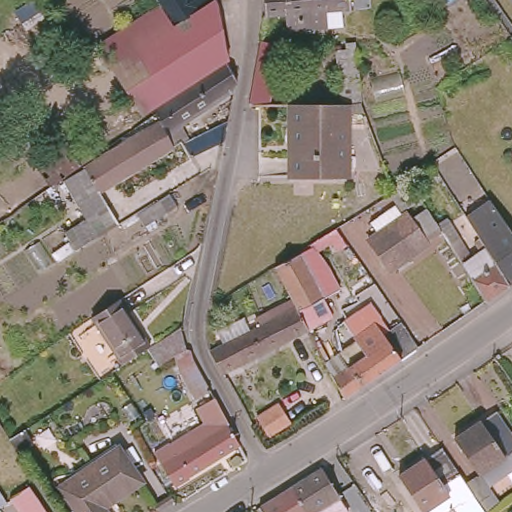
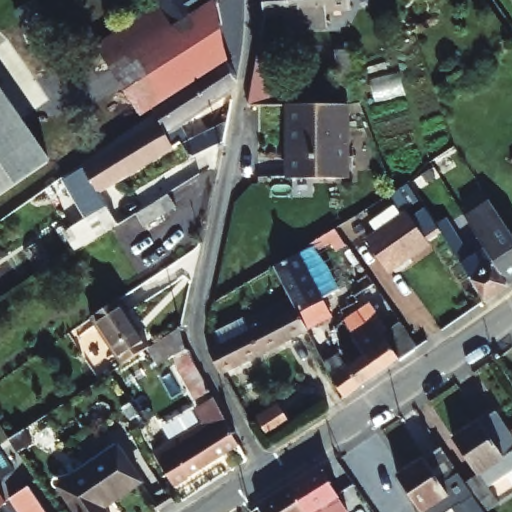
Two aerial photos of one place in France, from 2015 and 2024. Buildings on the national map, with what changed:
unchanged [(111,88),(128,77),(103,40),(148,11),(164,0),(176,20),(206,0),(225,0),(239,49),(234,53),(158,97),(146,104),(130,116),(111,88)]
unchanged [(176,20),(164,0),(206,0),(176,20)]
unchanged [(359,20),(346,21),(346,36),(286,37),(285,21),(264,21),(263,0),(359,0),(359,20)]
unchanged [(287,41),(278,96),(274,96),(274,100),(253,101),(248,101),(261,37),(287,41)]
unchanged [(162,104),(158,97),(234,53),(239,49),(243,69),(237,84),(187,116),(194,128),(236,110),(231,134),(196,148),(188,133),(181,137),(166,112),(162,104)]
new [(0,197),(0,84),(53,161),(0,197)]
unchanged [(346,173),(293,173),(293,100),(347,98),(346,173)]
unchanged [(198,150),(183,158),(173,141),(147,156),(131,132),(166,112),(181,137),(188,133),(196,148),(198,150)]
unchanged [(105,200),(84,214),(62,173),(85,159),(91,155),(131,132),(147,156),(108,179),(101,183),(96,186),(105,200)]
unchanged [(509,161),(512,158),(512,165),(509,161)]
unchanged [(178,202),(146,221),(139,210),(163,194),(170,190),(178,202)]
unchanged [(105,200),(118,220),(74,246),(63,228),(84,214),(105,200)]
unchanged [(428,241),(429,244),(389,271),(368,240),(378,233),(371,222),(396,205),(403,216),(407,213),(413,220),(428,210),(441,230),(442,231),(428,241)]
unchanged [(486,247),(474,229),(486,221),(500,241),(507,237),(512,244),(512,283),(510,285),(486,247)]
unchanged [(510,285),(487,301),(442,231),(441,230),(451,223),(472,256),(486,247),(510,285)]
unchanged [(228,345),(222,333),(251,317),(258,329),(302,305),(281,267),(289,262),(316,247),(346,291),(343,293),(331,299),(339,315),(315,329),(316,330),(228,375),(215,352),(218,350),(228,345)]
unchanged [(344,368),(336,353),(339,351),(333,328),(369,304),(381,295),(398,319),(414,343),(397,355),(341,395),(331,376),(344,368)]
unchanged [(142,344),(118,360),(86,313),(113,296),(144,343),(142,344)]
unchanged [(178,320),(188,353),(204,383),(190,392),(173,362),(169,351),(153,362),(142,344),(144,343),(178,320)]
unchanged [(240,444),(175,485),(154,453),(207,420),(199,407),(214,398),(240,444)]
unchanged [(512,432),(512,467),(490,482),(481,470),(479,472),(452,436),(494,407),(512,432)]
unchanged [(104,505),(109,512),(80,512),(60,483),(119,443),(143,478),(104,505)]
unchanged [(458,512),(454,505),(444,512),(428,512),(424,507),(423,509),(397,473),(442,443),(488,512),(458,512)]
unchanged [(291,484),(323,464),(339,492),(323,503),(330,512),(309,512),(306,509),(291,484)]
unchanged [(28,484),(48,512),(21,512),(10,495),(28,484)]
unchanged [(309,512),(265,512),(259,504),(291,484),(306,509),(309,512)]

